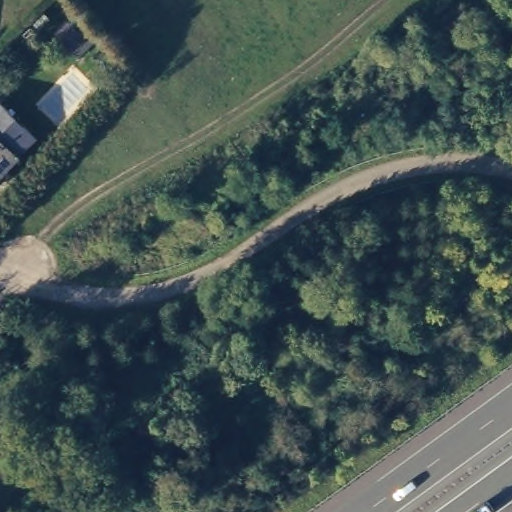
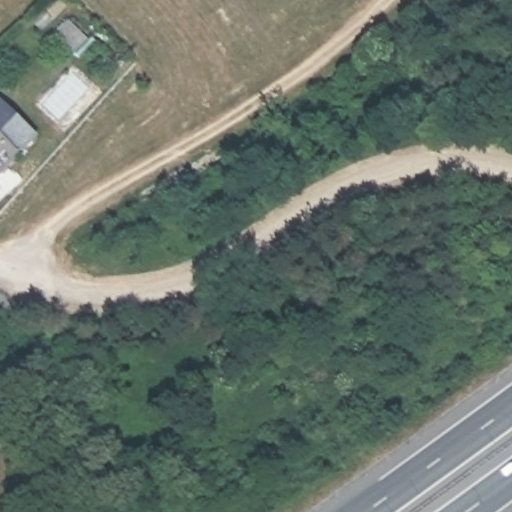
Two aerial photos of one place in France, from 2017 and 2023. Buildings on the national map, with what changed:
unchanged [(90,37),(76,49),(58,30),(72,17),(90,37)]
unchanged [(0,97),(37,135),(0,171),(0,97)]

